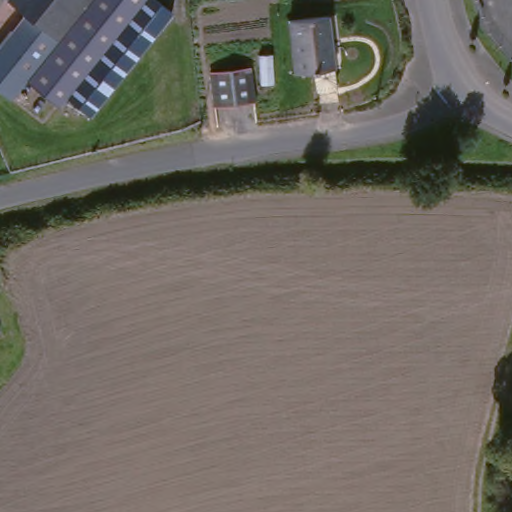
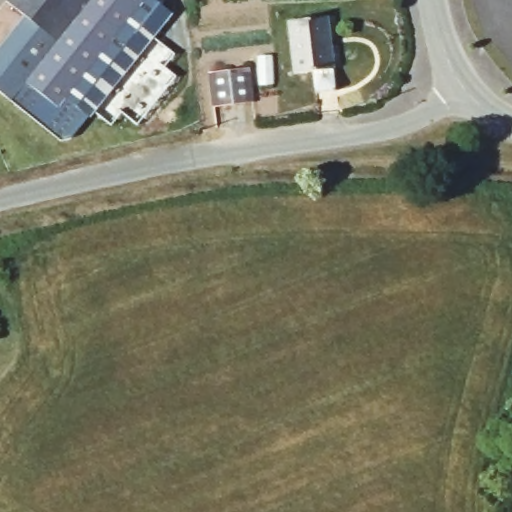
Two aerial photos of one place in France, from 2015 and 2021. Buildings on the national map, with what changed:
unchanged [(56,148),(0,102),(0,43),(18,20),(1,5),(5,0),(144,0),(161,13),(56,148)]
unchanged [(283,21),(322,17),(328,69),(331,90),(310,93),(308,71),(289,74),(283,21)]
unchanged [(213,106),(209,72),(249,68),(253,102),(213,106)]

